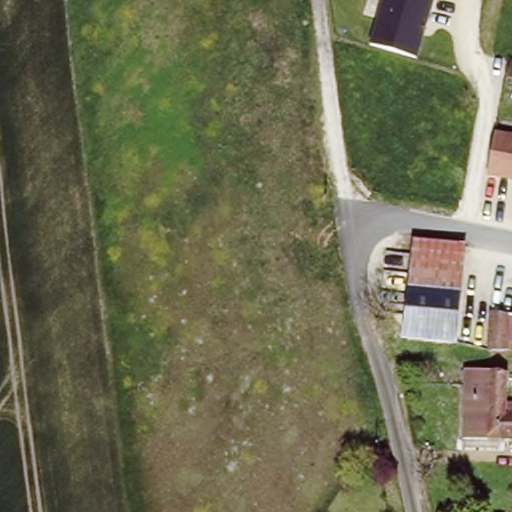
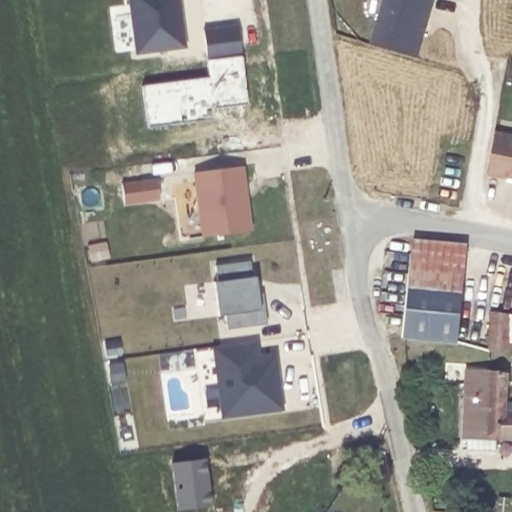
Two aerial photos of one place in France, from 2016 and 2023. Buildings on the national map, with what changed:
new [(134,56),(125,0),(180,0),(187,48),(134,56)]
unchanged [(435,0),(418,59),(371,43),(382,0),(435,0)]
new [(237,56),(206,60),(201,28),(237,23),(242,55),(237,56)]
new [(210,109),(212,124),(184,129),(185,137),(130,144),(122,87),(206,76),(203,61),(206,60),(237,56),(244,105),(210,109)]
unchanged [(512,133),(512,181),(486,176),(494,130),(512,133)]
new [(201,238),(192,172),(245,164),(254,229),(201,238)]
unchanged [(417,247),(466,258),(459,307),(410,299),(417,247)]
new [(226,330),(224,314),(217,316),(211,281),(216,280),(212,265),(248,260),(251,276),(256,277),(258,292),(262,293),(267,324),(226,330)]
unchanged [(459,307),(452,346),(404,338),(410,299),(459,307)]
unchanged [(507,336),(507,349),(490,347),(492,313),(512,316),(512,337),(507,336)]
new [(220,418),(211,347),(257,341),(259,355),(276,352),(283,409),(220,418)]
unchanged [(512,370),(512,439),(501,438),(500,449),(467,445),(471,366),(512,370)]
new [(204,455),(210,502),(178,507),(172,460),(204,455)]

